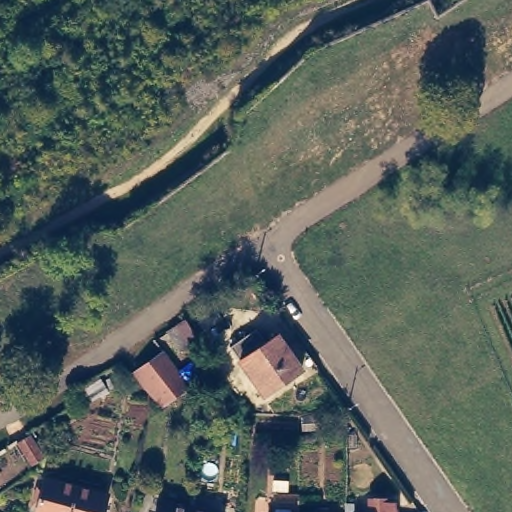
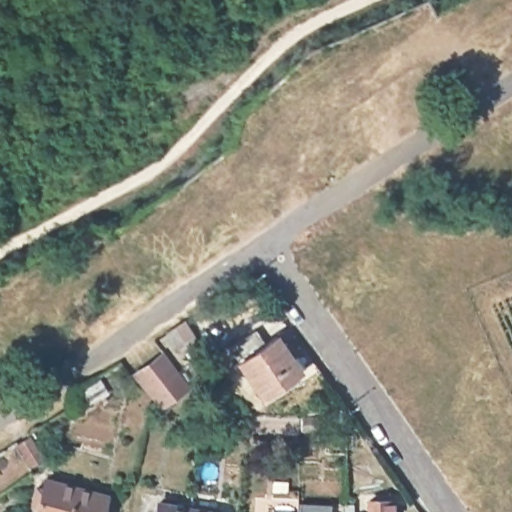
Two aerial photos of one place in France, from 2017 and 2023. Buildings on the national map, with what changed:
unchanged [(198,341),(180,352),(167,333),(185,322),(198,341)]
unchanged [(306,368),(269,394),(243,357),(281,332),(306,368)]
unchanged [(189,381),(159,402),(133,372),(165,350),(189,381)]
unchanged [(102,397),(76,407),(75,405),(71,394),(94,380),(102,397)]
unchanged [(44,459),(33,466),(16,442),(28,435),(44,459)]
unchanged [(40,512),(43,502),(37,500),(42,483),(48,485),(50,476),(81,485),(73,512),(40,512)]
unchanged [(106,512),(73,512),(81,485),(112,493),(106,512)]
unchanged [(190,501),(187,512),(155,512),(158,495),(190,501)]
unchanged [(394,500),(394,512),(372,512),(372,500),(394,500)]
unchanged [(221,506),(219,512),(187,512),(190,501),(221,506)]

